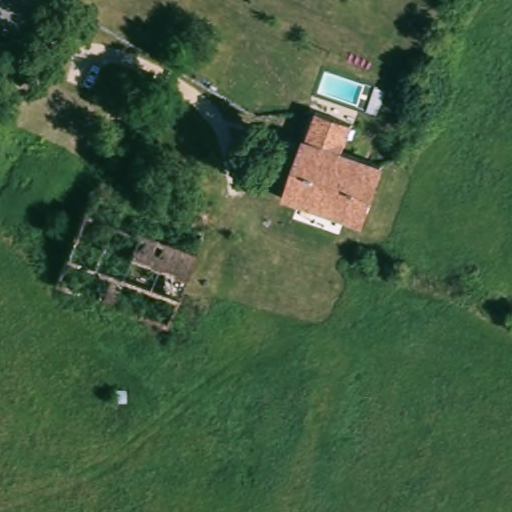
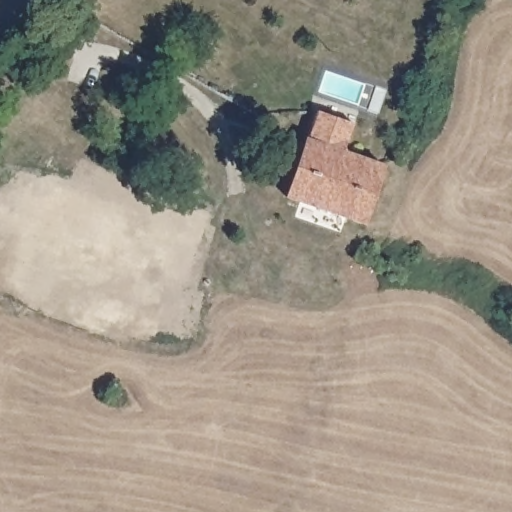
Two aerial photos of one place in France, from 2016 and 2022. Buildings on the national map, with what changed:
unchanged [(363,226),(289,201),(317,117),(318,114),(354,127),(345,154),(383,167),(363,226)]
unchanged [(98,172),(150,191),(144,207),(91,188),(98,172)]
unchanged [(175,300),(119,280),(137,232),(194,252),(175,300)]

